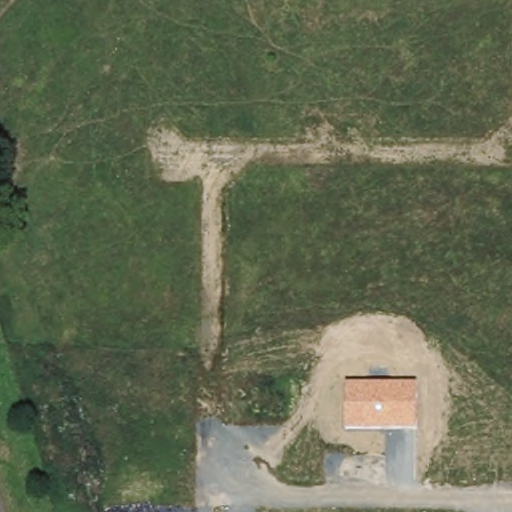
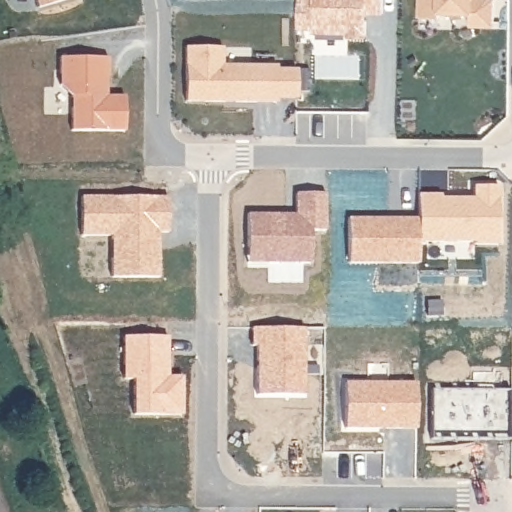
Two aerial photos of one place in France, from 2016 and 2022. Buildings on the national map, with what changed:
new [(37,6),(35,0),(58,0),(37,6)]
new [(383,16),(366,16),(365,40),(347,40),(347,36),(312,35),(313,31),(298,30),(298,0),(383,0),(383,16)]
new [(470,26),(470,11),(439,11),(439,17),(418,16),(418,0),(494,0),(494,25),(470,26)]
new [(188,100),(189,45),(226,46),(226,64),(280,65),(280,69),(300,69),(300,98),(280,98),(280,102),(237,101),(227,101),(188,100)]
new [(72,130),(71,98),(60,86),(60,58),(107,58),(107,95),(124,96),(124,131),(72,130)]
new [(422,194),(444,194),(445,198),(477,197),(477,185),(502,186),(501,245),(477,245),(476,242),(422,241),(422,218),(422,194)]
new [(251,213),(291,214),(291,219),(299,220),(300,192),(329,192),(329,230),(314,230),(314,263),(271,262),(250,262),(250,247),(251,213)]
new [(160,277),(113,277),(114,235),(88,235),(88,195),(170,196),(170,232),(161,232),(160,251),(160,277)]
new [(352,217),(422,218),(422,241),(421,263),(351,262),(352,217)]
new [(257,394),(257,346),(252,345),(252,327),(304,327),(305,395),(257,394)]
new [(125,336),(169,337),(169,377),(183,377),(183,415),(135,415),(135,379),(125,379),(125,336)]
unchanged [(347,381),(417,382),(416,428),(345,428),(347,381)]

